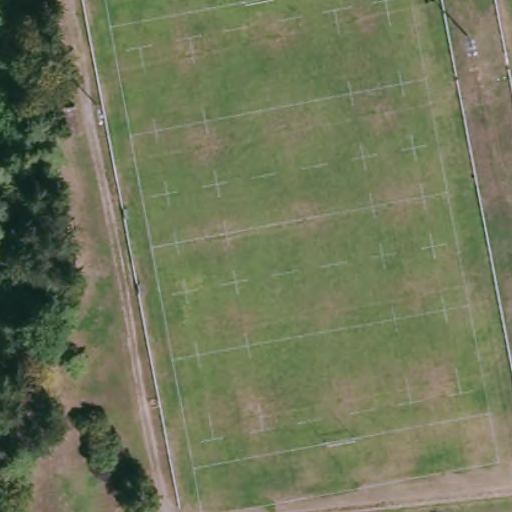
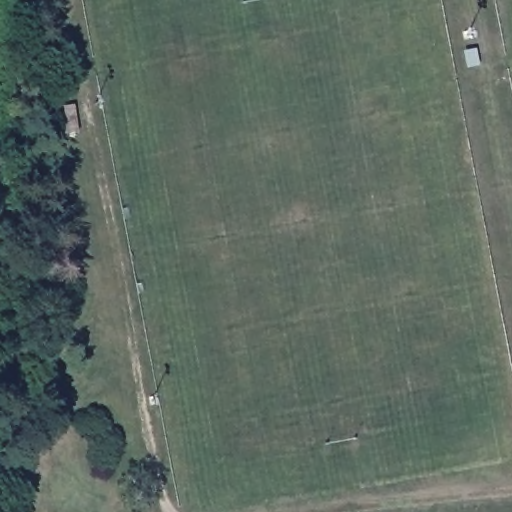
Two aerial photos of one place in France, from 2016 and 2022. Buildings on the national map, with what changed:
unchanged [(77,133),(60,135),(56,107),(72,104),(77,133)]

